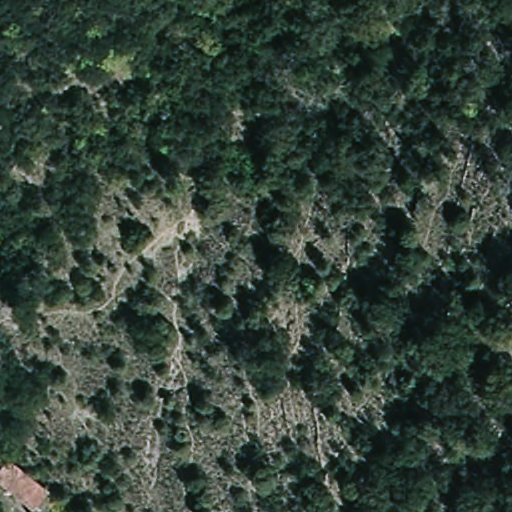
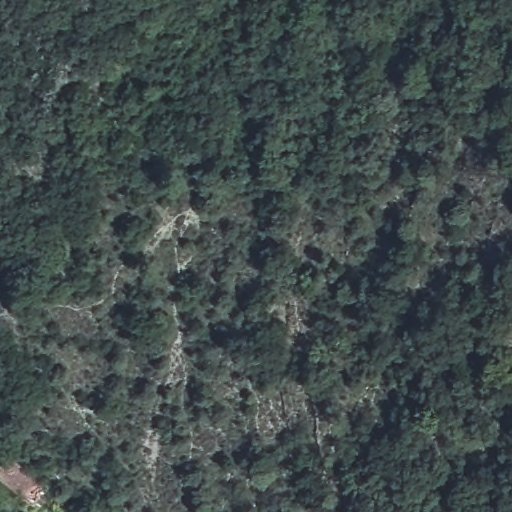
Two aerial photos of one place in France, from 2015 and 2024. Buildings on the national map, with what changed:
unchanged [(34,510),(0,484),(0,469),(9,458),(50,489),(34,510)]

